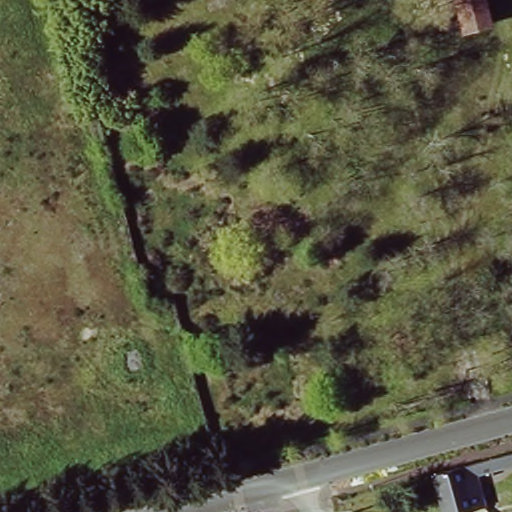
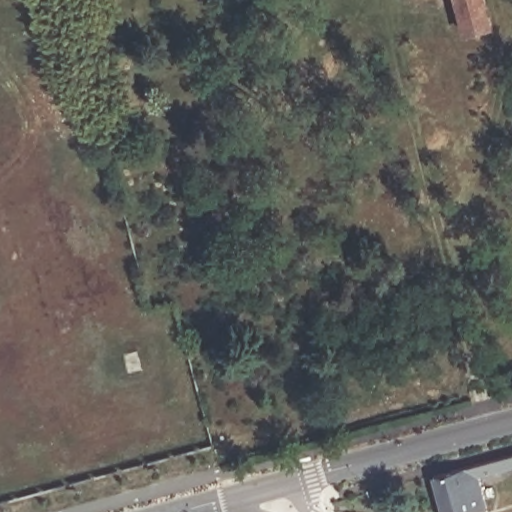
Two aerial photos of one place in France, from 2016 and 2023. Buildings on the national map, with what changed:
unchanged [(291,17),(257,15),(252,0),(286,0),(291,17)]
unchanged [(488,26),(465,33),(455,0),(481,0),(488,26)]
unchanged [(475,463),(502,456),(512,453),(512,467),(505,468),(478,476),(487,507),(468,512),(442,512),(432,475),(475,463)]

